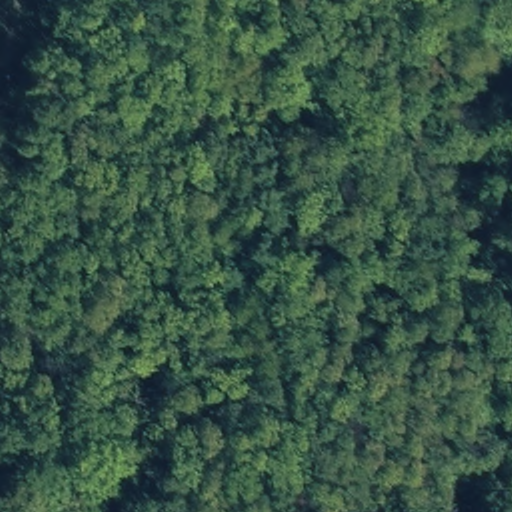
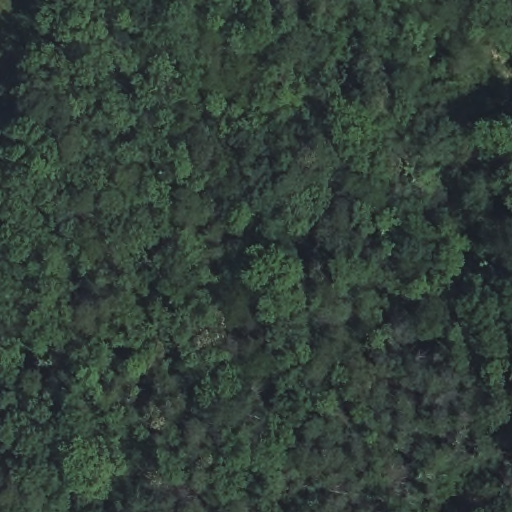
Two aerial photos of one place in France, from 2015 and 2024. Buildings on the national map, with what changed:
[]

